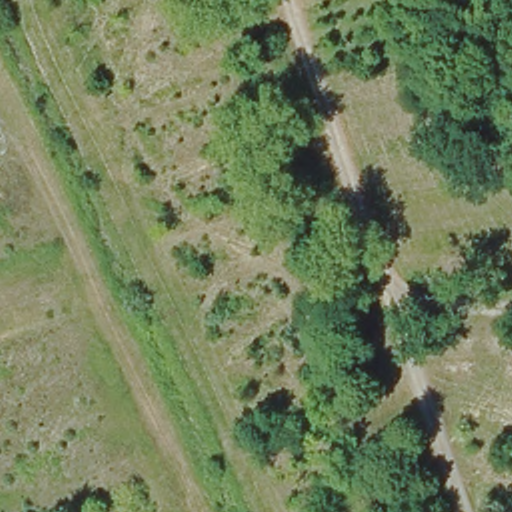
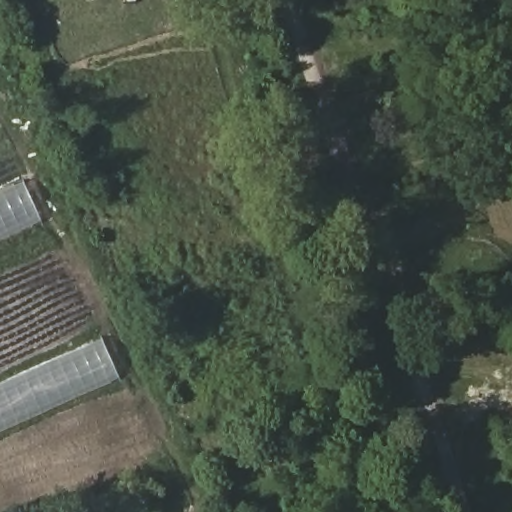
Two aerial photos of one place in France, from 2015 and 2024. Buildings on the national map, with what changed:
new [(23,179),(42,221),(0,240),(0,189),(23,179)]
new [(101,337),(119,378),(0,431),(0,382),(101,337)]

